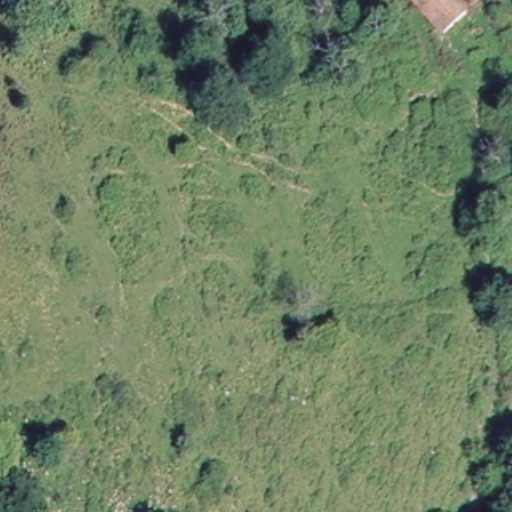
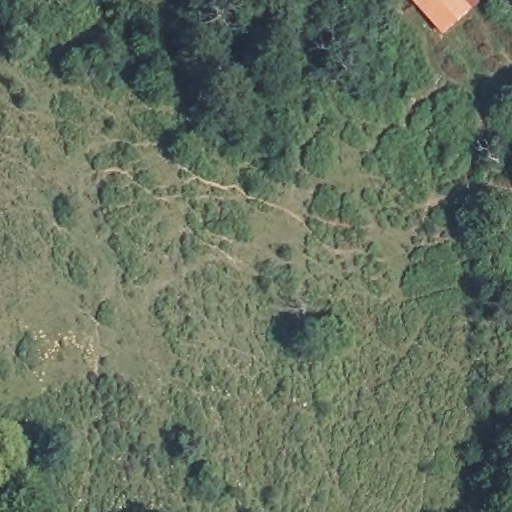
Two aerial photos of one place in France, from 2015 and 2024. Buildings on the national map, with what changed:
unchanged [(473,2),(445,35),(404,0),(471,0),(473,2)]

